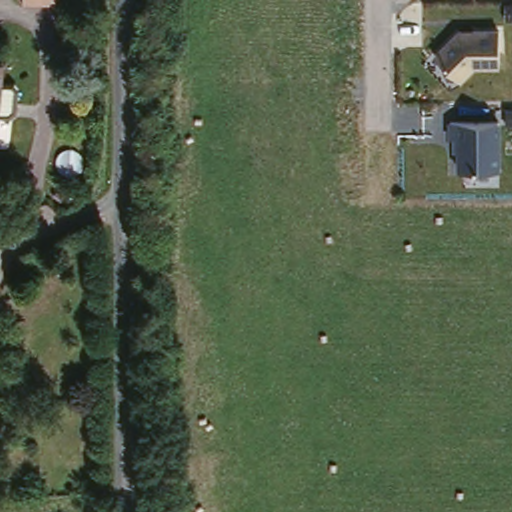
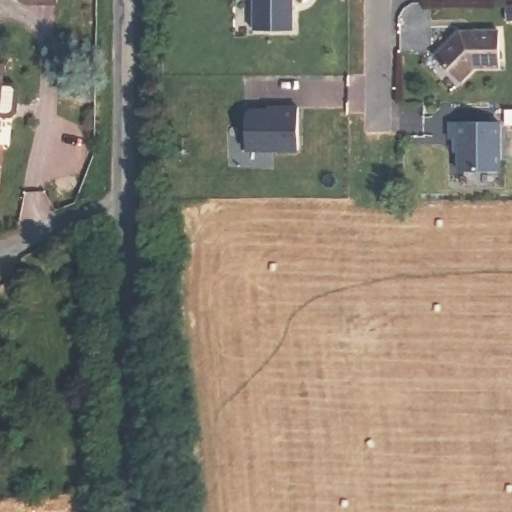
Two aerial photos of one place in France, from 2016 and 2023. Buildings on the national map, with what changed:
new [(55,0),(55,4),(25,2),(25,0),(55,0)]
new [(253,34),(253,0),(292,0),(292,34),(253,34)]
unchanged [(433,55),(459,32),(501,30),(501,67),(476,67),(461,81),(433,55)]
unchanged [(13,109),(8,114),(0,113),(0,82),(10,82),(14,86),(13,109)]
new [(245,118),(250,114),(280,114),(280,111),(298,111),(298,153),(246,153),(245,118)]
unchanged [(501,119),(502,171),(458,170),(457,154),(453,154),(453,138),(448,138),(449,120),(501,119)]

